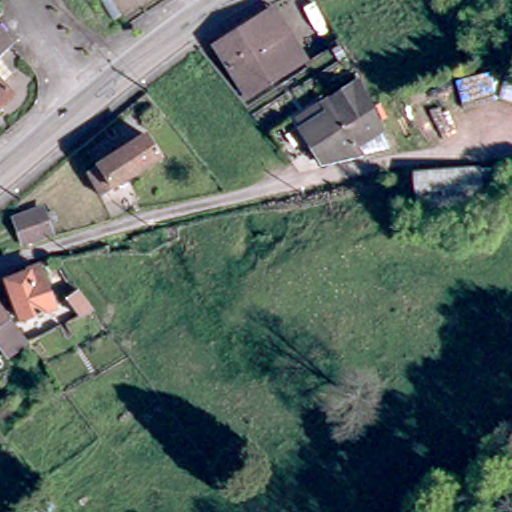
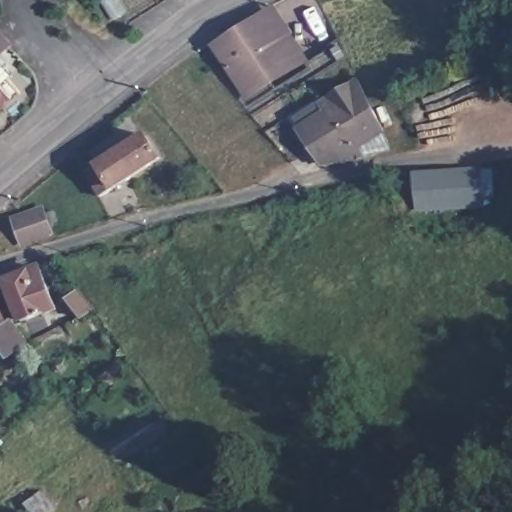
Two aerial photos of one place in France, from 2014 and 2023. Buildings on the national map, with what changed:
unchanged [(240,96),(246,92),(217,45),(275,8),(305,57),(274,76),(279,85),(283,94),(252,112),(246,105),(240,96)]
unchanged [(12,50),(0,60),(0,36),(12,50)]
unchanged [(17,79),(3,90),(14,103),(0,115),(0,60),(17,79)]
unchanged [(393,147),(350,155),(318,161),(291,114),(292,113),(285,101),(307,87),(324,96),(359,78),(389,137),(393,147)]
unchanged [(162,133),(176,158),(112,196),(100,171),(162,133)]
unchanged [(482,213),(416,214),(415,183),(415,177),(482,175),(494,175),(494,182),(495,212),(482,213)]
unchanged [(30,242),(23,221),(51,211),(60,234),(30,242)]
unchanged [(10,277),(45,267),(57,308),(25,320),(10,277)]
unchanged [(0,339),(0,298),(15,318),(37,348),(14,357),(0,339)]
unchanged [(74,330),(57,309),(72,298),(87,319),(74,330)]

